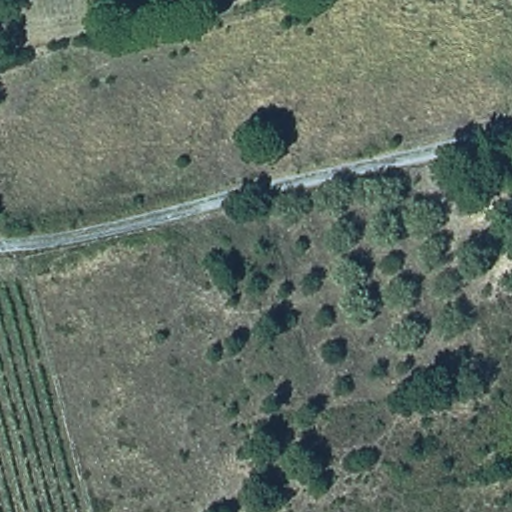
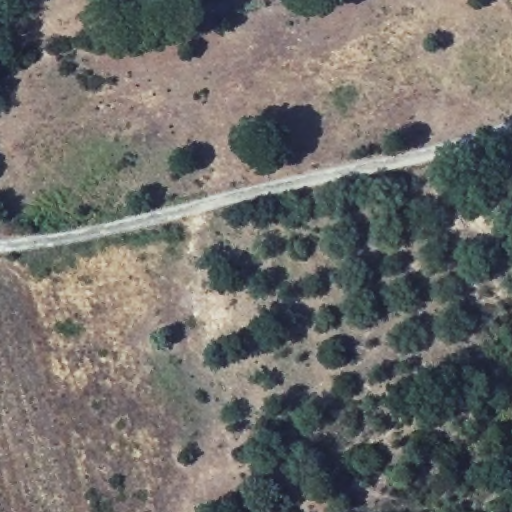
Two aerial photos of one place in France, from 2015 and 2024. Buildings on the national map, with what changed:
[]

